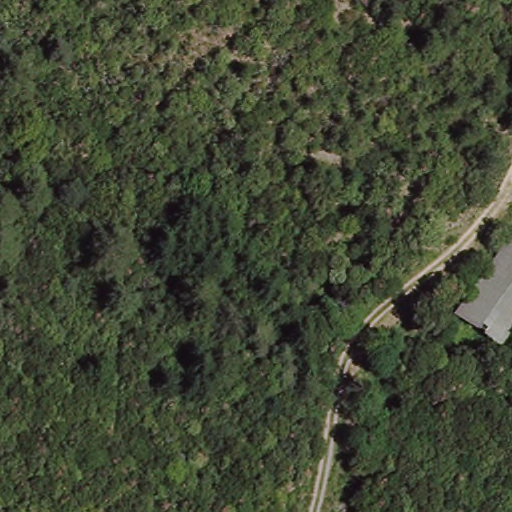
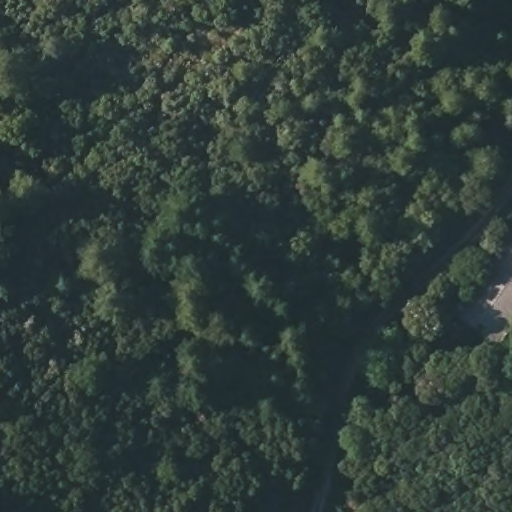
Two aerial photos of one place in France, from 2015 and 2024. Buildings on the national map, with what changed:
unchanged [(512,235),(512,336),(499,354),(452,319),(512,235)]

